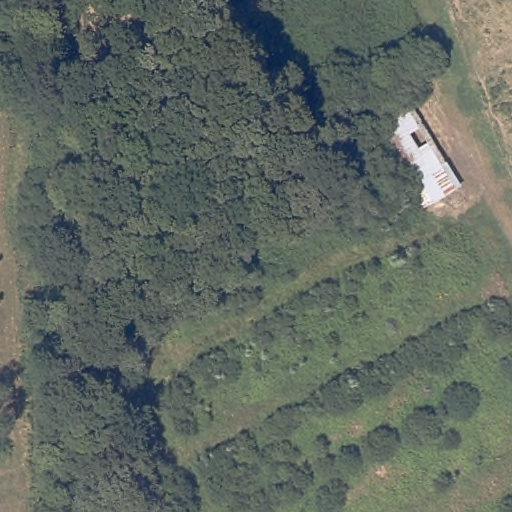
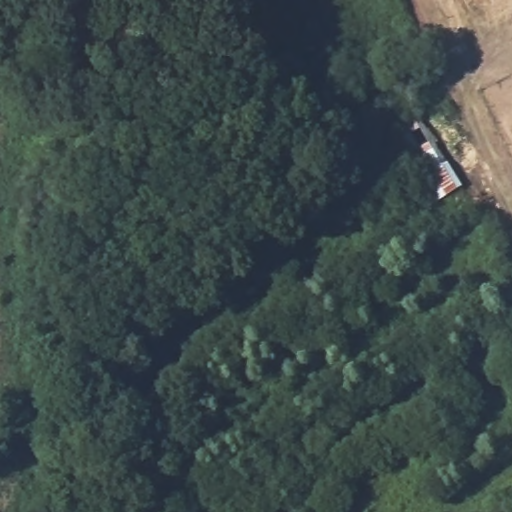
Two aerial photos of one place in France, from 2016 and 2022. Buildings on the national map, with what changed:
unchanged [(441,204),(426,180),(416,185),(379,122),(407,104),(445,168),(460,192),(441,204)]

